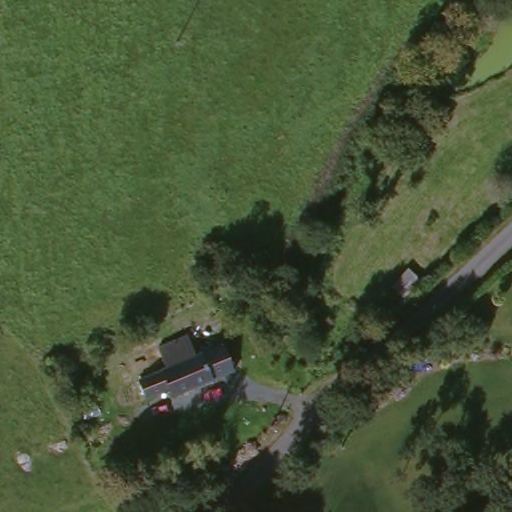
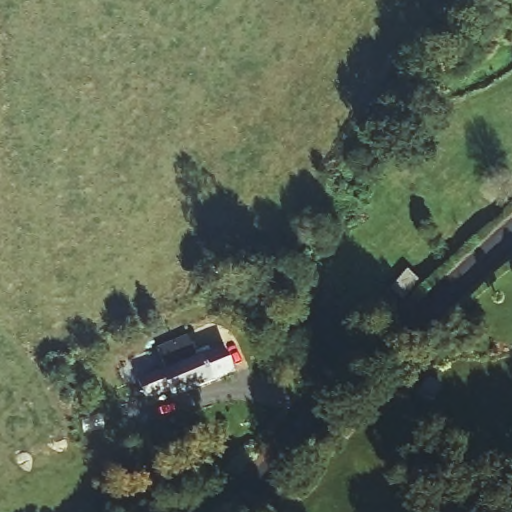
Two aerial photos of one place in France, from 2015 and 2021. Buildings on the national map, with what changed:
unchanged [(222,346),(235,373),(173,400),(168,393),(146,402),(138,382),(222,346)]

